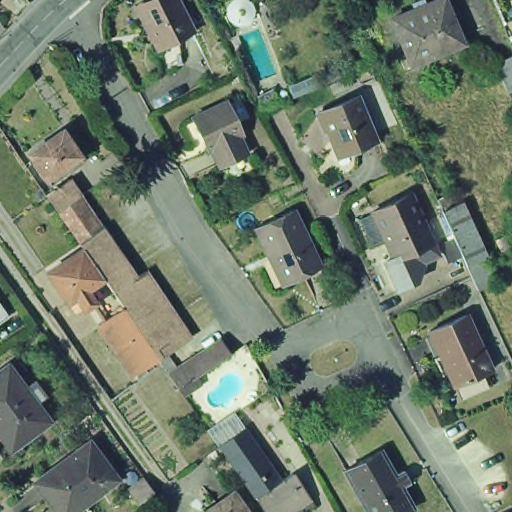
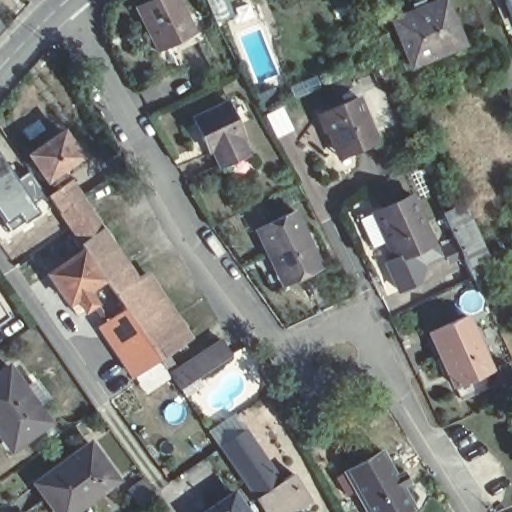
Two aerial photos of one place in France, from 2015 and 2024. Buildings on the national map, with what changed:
unchanged [(197,36),(162,54),(139,11),(160,0),(178,0),(197,36)]
unchanged [(465,50),(431,64),(429,58),(411,65),(396,25),(447,5),(465,50)]
unchanged [(7,29),(0,36),(0,17),(7,29)]
unchanged [(506,85),(495,56),(511,50),(512,53),(512,83),(506,85)]
unchanged [(376,136),(338,151),(320,109),(358,93),(376,136)]
unchanged [(238,145),(246,163),(219,176),(210,158),(205,160),(191,127),(226,110),(242,143),(238,145)]
unchanged [(59,166),(45,176),(28,152),(61,130),(77,154),(66,161),(70,166),(62,171),(59,166)]
new [(16,179),(28,171),(44,195),(33,203),(39,211),(9,232),(0,219),(0,157),(16,179)]
unchanged [(67,300),(46,271),(82,246),(78,241),(71,230),(64,220),(56,210),(45,195),(70,178),(81,193),(79,195),(87,205),(93,216),(100,226),(112,243),(123,260),(134,276),(144,270),(158,292),(173,313),(188,336),(165,352),(172,362),(164,368),(162,365),(157,358),(133,374),(114,346),(119,343),(102,320),(122,305),(113,292),(103,277),(86,288),(95,301),(85,307),(77,294),(67,300)]
unchanged [(401,283),(390,257),(399,252),(390,234),(375,240),(362,213),(376,207),(413,189),(435,235),(418,243),(426,261),(421,276),(401,283)]
unchanged [(481,289),(476,276),(470,264),(445,210),(463,201),(488,257),(485,258),(495,282),(481,289)]
unchanged [(319,266),(281,283),(255,228),(293,209),(319,266)]
unchanged [(0,320),(0,302),(9,314),(0,320)]
unchanged [(482,368),(477,370),(448,383),(447,384),(422,330),(458,313),(482,368)]
unchanged [(168,374),(187,362),(197,355),(222,338),(230,352),(206,368),(196,375),(177,387),(168,374)]
unchanged [(48,427),(16,450),(0,430),(0,378),(7,373),(48,427)]
unchanged [(268,512),(221,443),(242,427),(278,478),(291,470),(309,496),(285,512),(268,512)]
unchanged [(73,512),(55,512),(36,484),(90,445),(116,482),(73,512)]
unchanged [(412,512),(367,512),(346,475),(383,454),(398,477),(405,473),(411,485),(404,489),(415,510),(412,512)]
unchanged [(244,512),(206,512),(232,493),(244,512)]

